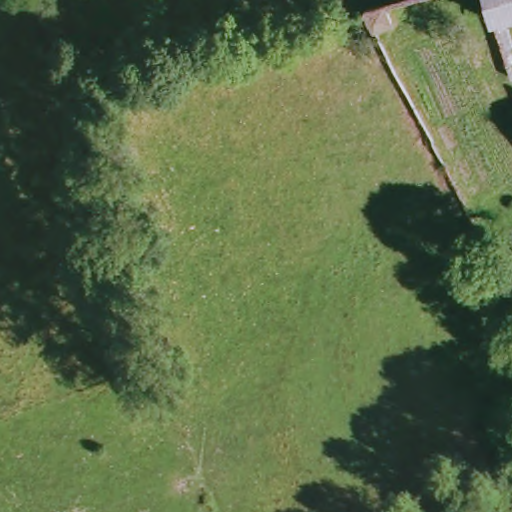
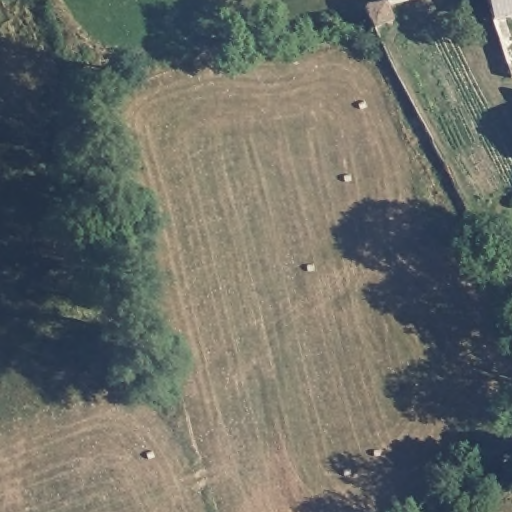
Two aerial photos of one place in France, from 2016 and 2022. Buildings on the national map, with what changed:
unchanged [(497,26),(489,0),(512,0),(512,23),(497,26)]
unchanged [(364,8),(386,3),(395,23),(376,31),(364,8)]

